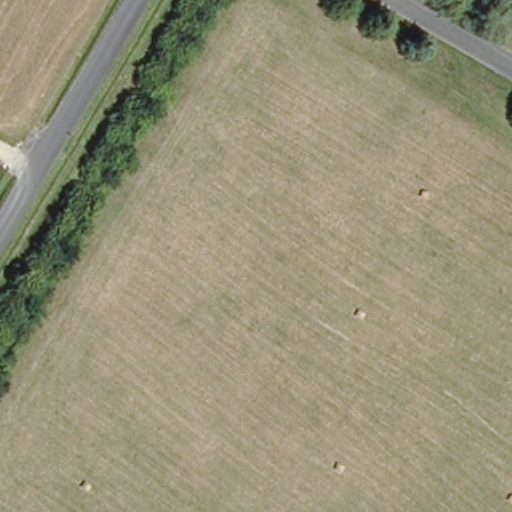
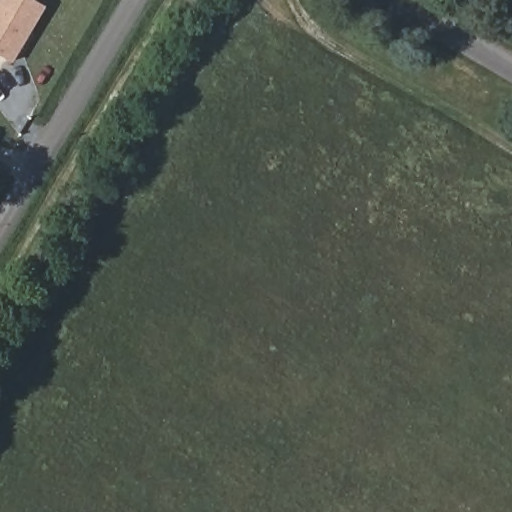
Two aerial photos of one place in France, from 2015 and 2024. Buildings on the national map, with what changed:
new [(46,7),(13,64),(0,56),(0,0),(34,0),(46,7)]

